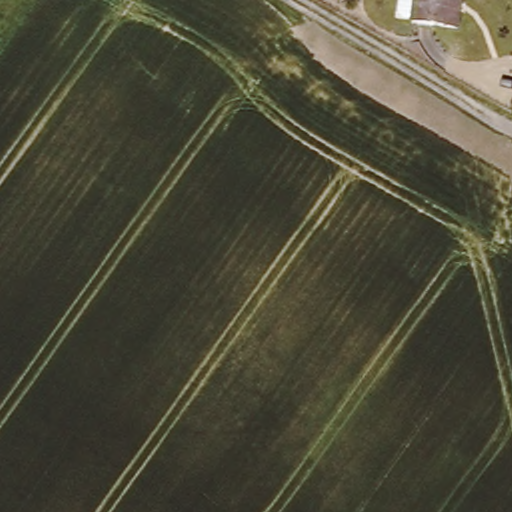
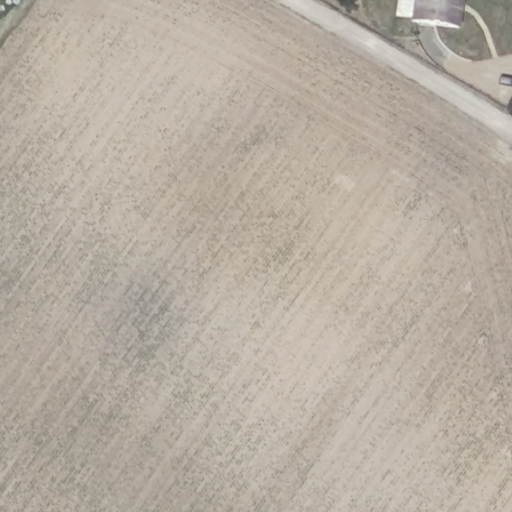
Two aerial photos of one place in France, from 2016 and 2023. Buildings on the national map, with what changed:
unchanged [(416,20),(419,0),(465,0),(462,26),(416,20)]

